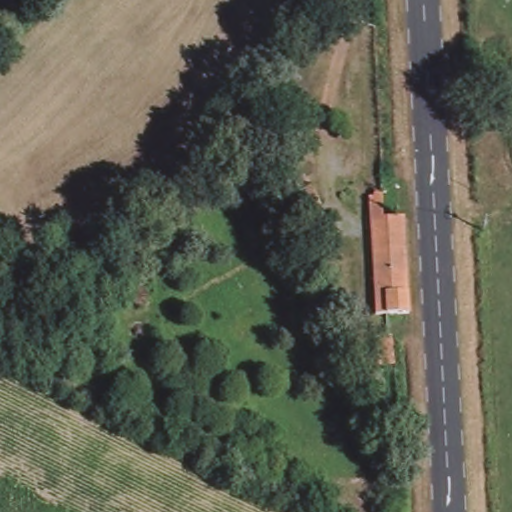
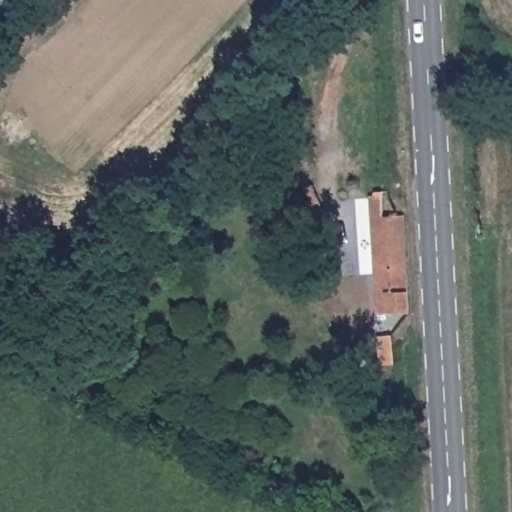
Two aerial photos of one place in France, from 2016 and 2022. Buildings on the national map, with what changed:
unchanged [(378,323),(376,217),(407,215),(412,318),(402,319),(378,323)]

